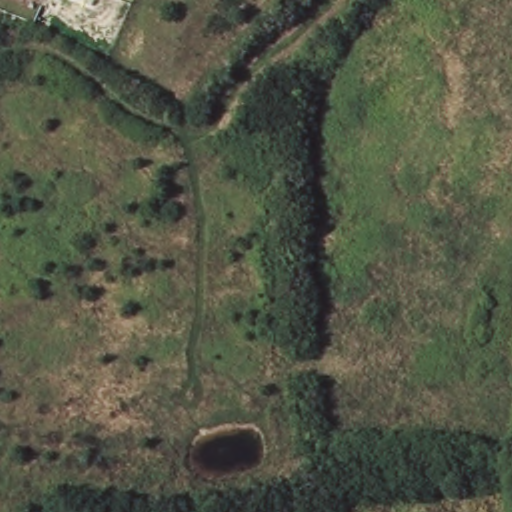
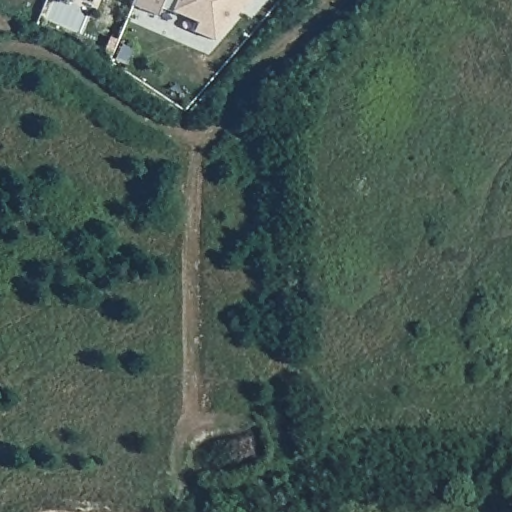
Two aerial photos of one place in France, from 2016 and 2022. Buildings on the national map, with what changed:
new [(198,32),(202,23),(165,7),(161,17),(137,7),(140,0),(254,0),(218,41),(198,32)]

